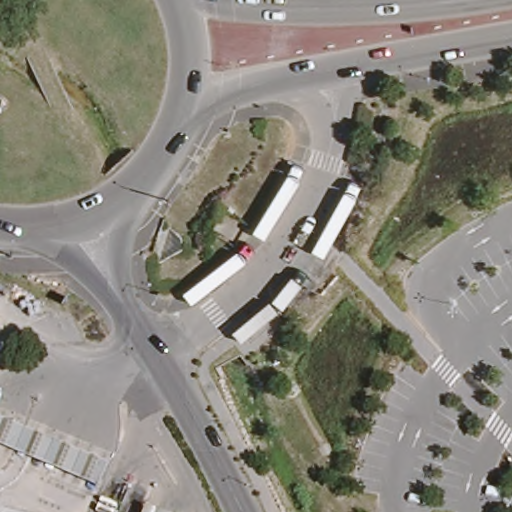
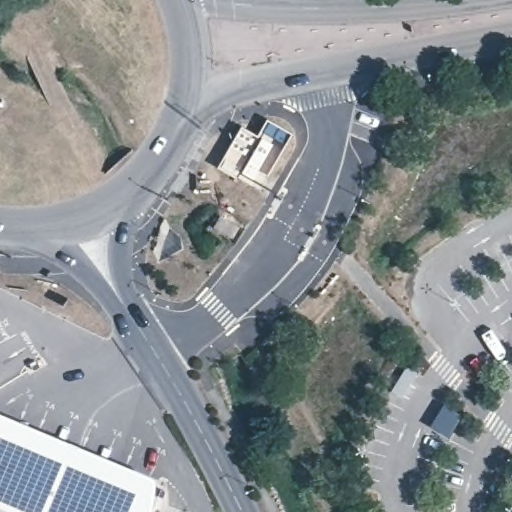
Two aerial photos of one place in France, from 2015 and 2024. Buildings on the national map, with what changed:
unchanged [(216,219),(241,230),(234,243),(210,230),(216,219)]
new [(156,500),(152,512),(2,512),(0,511),(0,415),(157,479),(156,500)]

